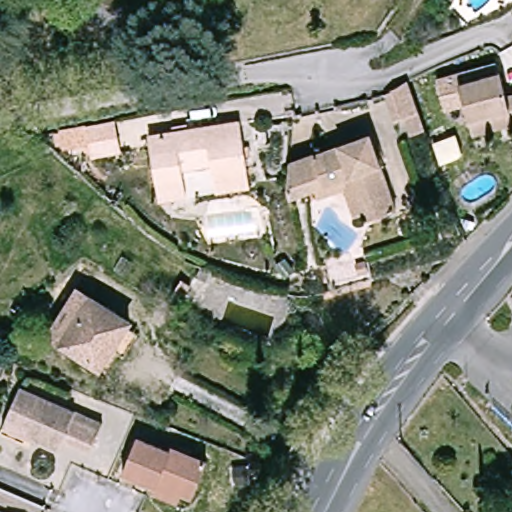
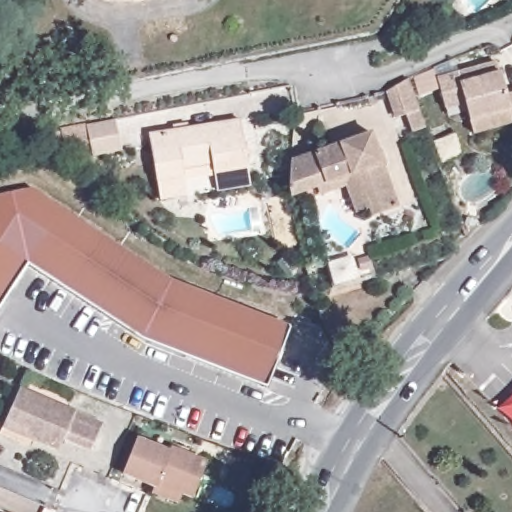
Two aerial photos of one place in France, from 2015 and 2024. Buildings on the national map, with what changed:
unchanged [(506,94),(512,93),(512,124),(469,131),(465,103),(444,106),(439,74),(501,64),(506,94)]
unchanged [(416,131),(410,114),(401,117),(390,87),(410,78),(421,110),(427,128),(416,131)]
unchanged [(168,199),(165,179),(157,129),(245,117),(251,167),(254,185),(223,190),(220,172),(218,161),(189,165),(191,175),(193,195),(168,199)]
unchanged [(292,161),(369,129),(403,203),(377,215),(374,209),(359,176),(318,193),(294,203),(292,161)]
unchanged [(96,169),(92,136),(122,132),(126,165),(96,169)]
unchanged [(359,176),(374,209),(358,216),(350,196),(324,207),(318,193),(359,176)]
new [(267,386),(145,340),(26,263),(0,305),(0,195),(31,187),(173,281),(290,326),(267,386)]
demolished [(139,324),(110,370),(49,332),(62,310),(76,318),(91,293),(139,324)]
unchanged [(13,423),(26,390),(107,423),(95,453),(68,442),(65,451),(33,438),(10,429),(13,423)]
unchanged [(156,480),(126,468),(138,436),(167,447),(169,442),(209,459),(196,491),(184,486),(179,500),(153,488),(156,480)]

